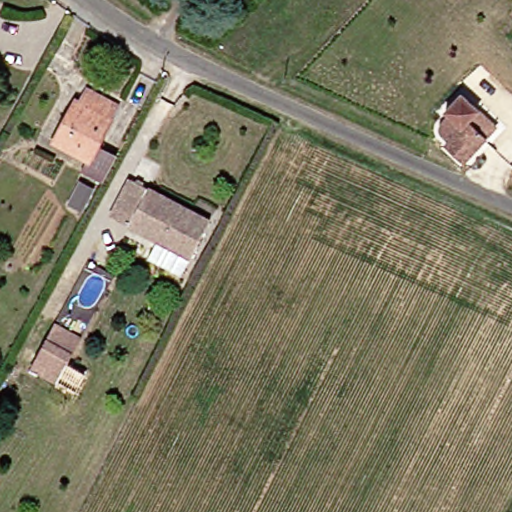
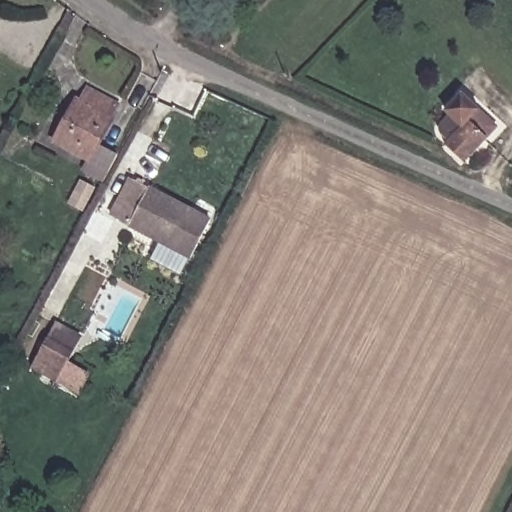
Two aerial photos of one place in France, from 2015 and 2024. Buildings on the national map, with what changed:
unchanged [(115,111),(121,116),(105,148),(121,156),(107,183),(86,171),(95,156),(60,136),(78,106),(83,95),(90,98),(96,86),(120,99),(115,111)]
unchanged [(476,174),(459,158),(458,157),(462,153),(455,146),(454,141),(455,136),(463,126),(460,122),(476,105),(493,121),(482,131),(500,149),(498,151),(476,174)]
unchanged [(225,226),(204,263),(130,222),(151,185),(225,226)]
unchanged [(31,358),(47,329),(56,314),(82,328),(73,344),(58,372),(31,358)]

